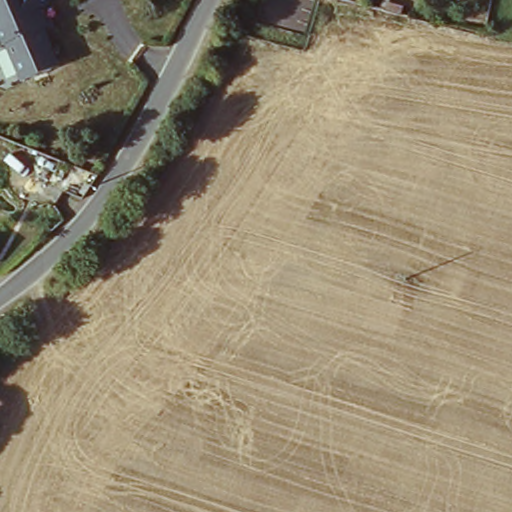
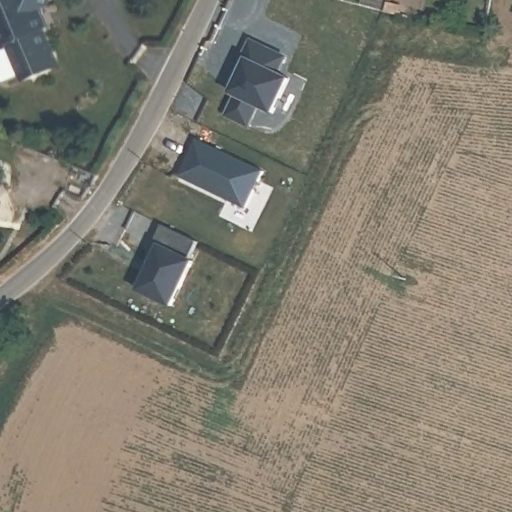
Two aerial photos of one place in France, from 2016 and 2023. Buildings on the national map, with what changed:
unchanged [(5,44),(0,45),(0,0),(52,0),(47,12),(40,14),(47,37),(45,39),(43,39),(50,65),(52,74),(45,76),(23,82),(16,84),(15,79),(5,44)]
unchanged [(397,14),(383,9),(387,0),(400,0),(401,1),(397,14)]
new [(232,94),(227,91),(245,60),(240,57),(249,41),(284,59),(276,74),(288,80),(272,112),(255,104),(245,124),(222,112),(232,94)]
new [(199,142),(258,171),(242,207),(180,178),(199,142)]
new [(197,239),(192,251),(199,254),(175,303),(135,285),(165,221),(197,239)]

